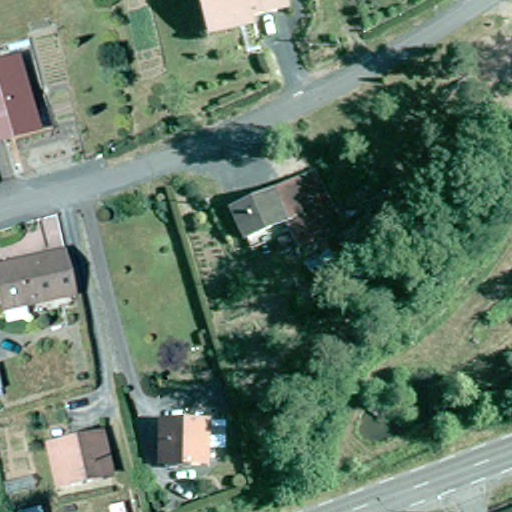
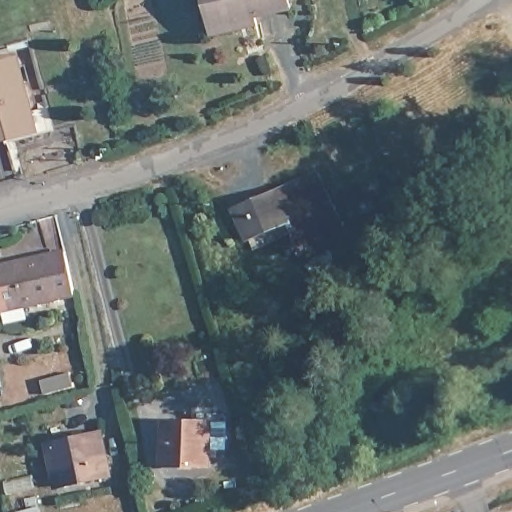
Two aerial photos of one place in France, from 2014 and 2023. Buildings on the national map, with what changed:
unchanged [(202,24),(197,0),(280,0),(281,4),(245,11),(246,14),(247,20),(204,29),(202,24)]
unchanged [(12,55),(31,126),(0,134),(0,58),(12,55)]
unchanged [(278,218),(265,188),(305,171),(330,224),(277,248),(265,224),(278,218)]
unchanged [(239,235),(225,205),(265,188),(278,218),(265,224),(239,235)]
unchanged [(0,305),(0,260),(5,259),(56,247),(65,290),(0,305)]
unchanged [(2,393),(0,393),(0,386),(2,393)]
unchanged [(205,456),(160,456),(160,413),(207,414),(205,456)]
unchanged [(105,471),(52,483),(43,442),(96,429),(105,471)]

